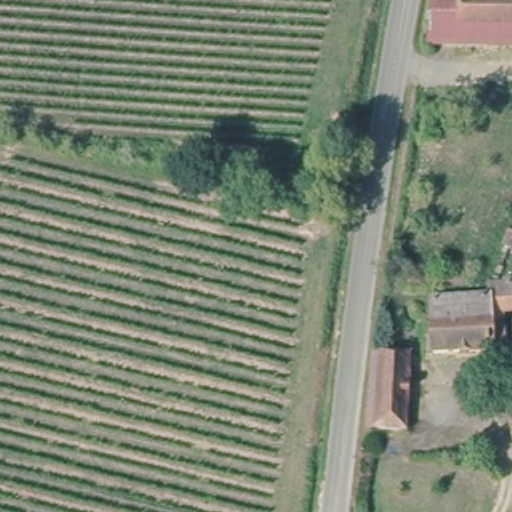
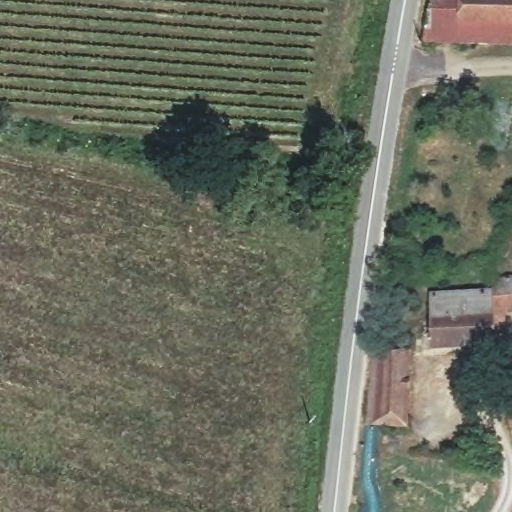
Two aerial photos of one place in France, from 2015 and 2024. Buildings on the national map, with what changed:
unchanged [(435,0),(512,0),(512,23),(485,22),(485,43),(461,42),(426,41),(431,20),(435,0)]
unchanged [(485,22),(512,23),(512,44),(485,43),(485,22)]
unchanged [(485,295),(485,288),(484,277),(512,278),(512,308),(501,308),(503,346),(495,346),(430,348),(432,295),(485,295)]
unchanged [(375,348),(381,348),(413,353),(408,426),(370,424),(375,348)]

